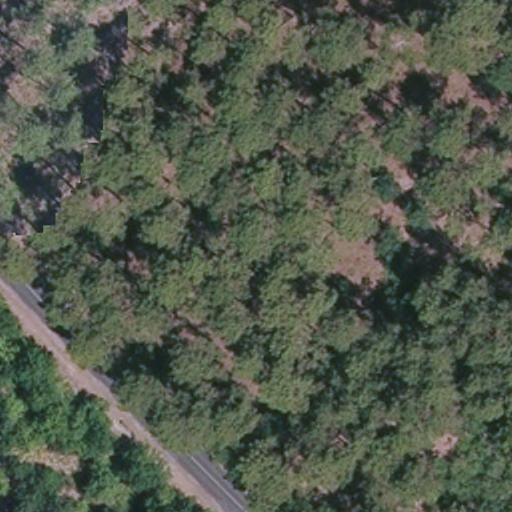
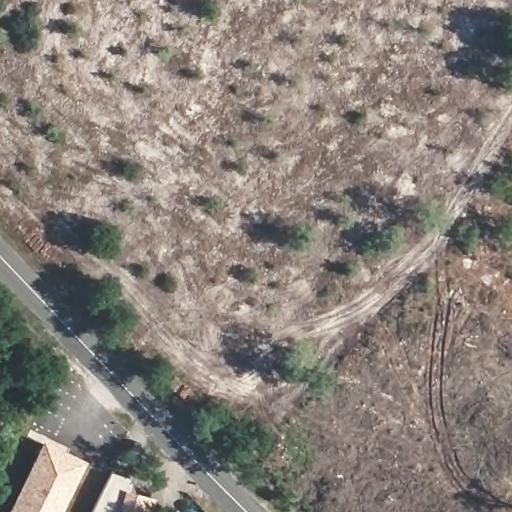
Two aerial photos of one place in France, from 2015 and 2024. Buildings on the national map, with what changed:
new [(86,462),(62,512),(11,512),(8,511),(43,441),(86,462)]
new [(132,479),(127,490),(155,498),(151,512),(90,512),(111,472),(132,479)]

